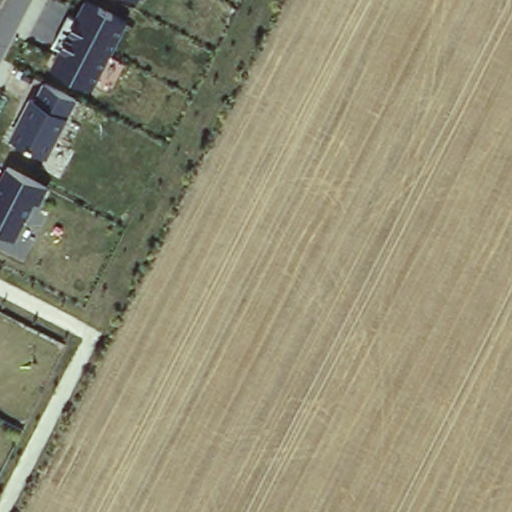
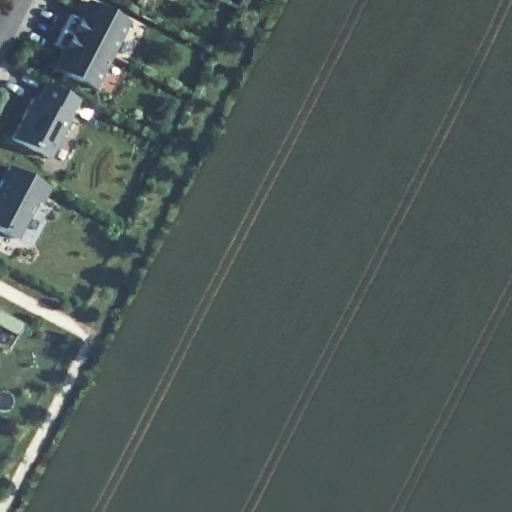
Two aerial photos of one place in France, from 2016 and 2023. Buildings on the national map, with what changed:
unchanged [(91,88),(51,65),(61,47),(53,43),(69,13),(75,17),(83,0),(89,0),(127,20),(91,88)]
unchanged [(30,97),(34,99),(42,81),(76,101),(47,156),(10,137),(30,97)]
unchanged [(5,165),(48,188),(41,203),(34,201),(16,238),(0,231),(0,176),(5,165)]

